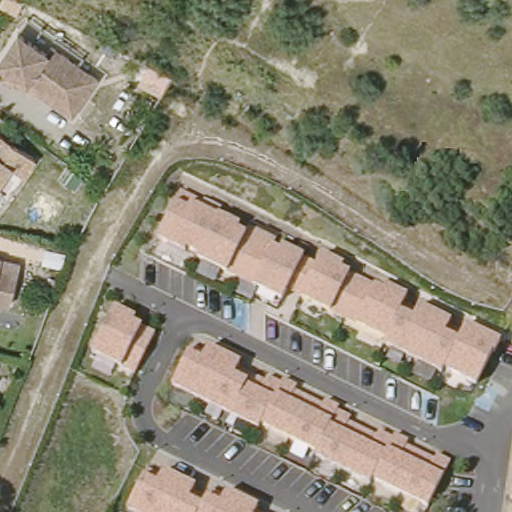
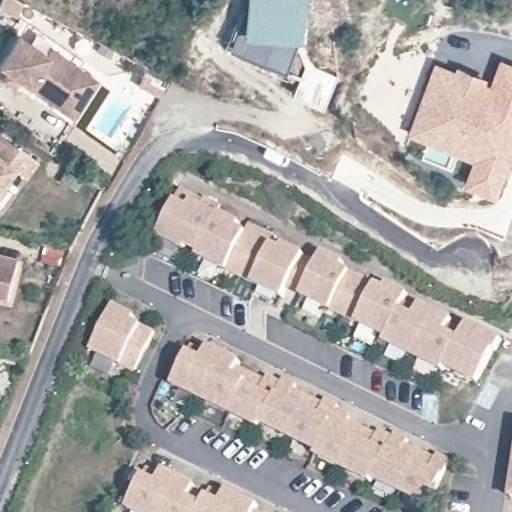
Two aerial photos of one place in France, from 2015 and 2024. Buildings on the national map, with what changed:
new [(300,39),(314,65),(337,76),(322,109),(290,92),(297,77),(283,67),(223,42),(241,0),(307,0),(304,38),(300,39)]
unchanged [(85,60),(80,67),(100,81),(73,118),(20,81),(8,72),(0,67),(0,62),(18,35),(28,21),(85,60)]
new [(437,66),(494,87),(503,68),(512,72),(512,147),(494,190),(468,178),(478,156),(412,128),(437,66)]
unchanged [(20,80),(20,81),(15,87),(3,79),(8,72),(20,80)]
unchanged [(30,176),(5,211),(0,207),(0,131),(42,160),(30,176)]
unchanged [(180,192),(309,257),(314,249),(343,263),(339,272),(373,288),(376,282),(500,338),(475,388),(432,371),(286,293),(278,305),(158,241),(180,192)]
unchanged [(0,266),(0,253),(3,254),(0,266)]
unchanged [(12,298),(0,295),(0,266),(18,270),(12,298)]
unchanged [(111,310),(156,333),(135,374),(95,355),(111,310)]
unchanged [(201,358),(210,344),(239,357),(237,366),(280,390),(285,385),(356,417),(353,426),(447,467),(428,507),(171,389),(191,355),(201,358)]
unchanged [(512,471),(512,505),(507,504),(512,471)]
unchanged [(145,477),(156,485),(164,472),(221,495),(226,490),(260,507),(258,512),(129,512),(145,477)]

